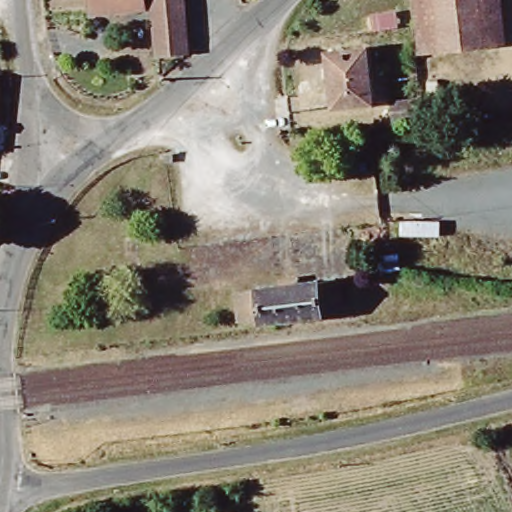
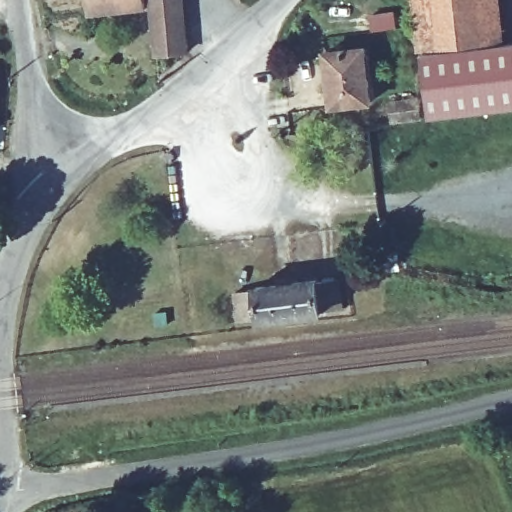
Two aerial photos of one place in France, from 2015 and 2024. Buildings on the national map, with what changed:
unchanged [(102,0),(154,0),(154,2),(103,7),(102,0)]
unchanged [(162,0),(195,0),(199,48),(166,49),(162,0)]
unchanged [(509,43),(426,51),(422,0),(505,0),(509,43)]
new [(434,118),(426,51),(509,43),(512,43),(512,109),(434,118)]
unchanged [(332,52),(370,48),(376,102),(338,106),(332,52)]
new [(421,101),(422,120),(396,124),(394,103),(421,101)]
unchanged [(261,325),(262,322),(244,323),(239,292),(337,279),(342,312),(261,325)]
unchanged [(287,402),(315,400),(316,420),(287,423),(287,402)]

